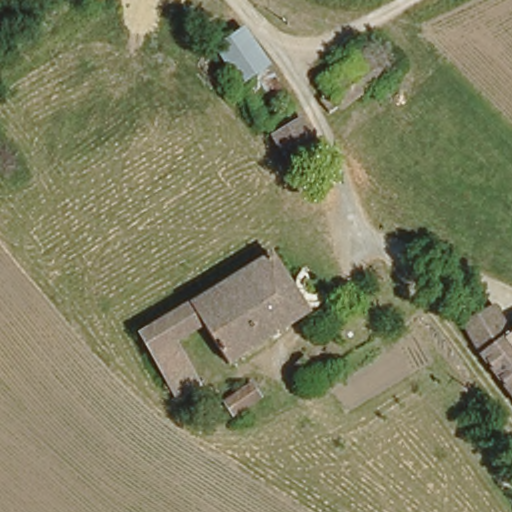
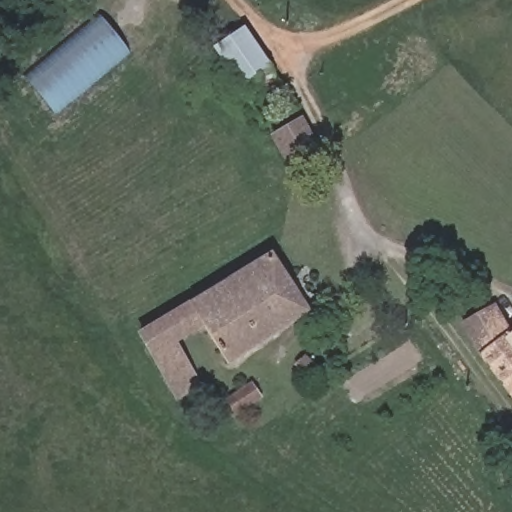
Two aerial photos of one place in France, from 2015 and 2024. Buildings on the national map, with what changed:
new [(55,114),(24,77),(99,14),(130,51),(55,114)]
unchanged [(243,19),(275,70),(242,92),(211,41),(243,19)]
unchanged [(382,35),(404,67),(336,110),(311,79),(382,35)]
unchanged [(298,118),(315,150),(291,165),(263,119),(284,106),(289,103),(295,113),(298,118)]
unchanged [(151,310),(159,305),(164,312),(267,249),(302,307),(223,356),(199,318),(168,336),(156,317),(151,310)]
unchanged [(447,307),(477,288),(508,333),(512,330),(512,402),(476,353),(447,307)]
unchanged [(180,360),(161,371),(135,329),(156,317),(168,336),(180,360)]

